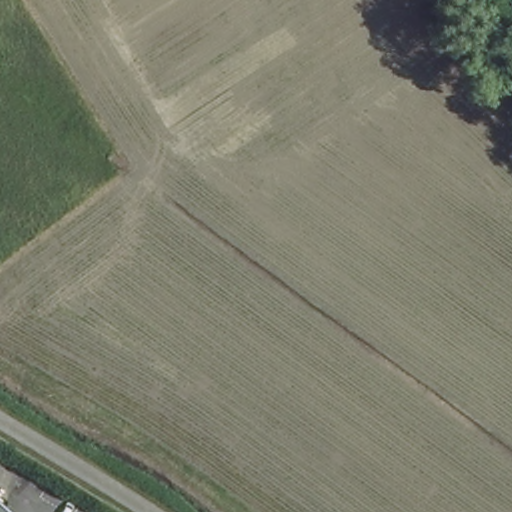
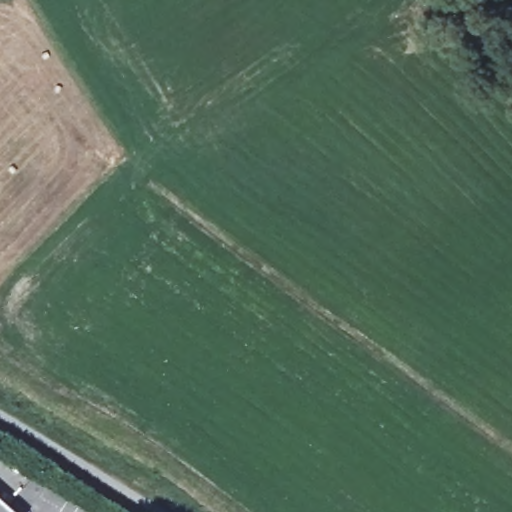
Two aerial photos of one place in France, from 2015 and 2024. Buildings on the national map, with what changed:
unchanged [(0,512),(0,500),(13,512),(0,512)]

